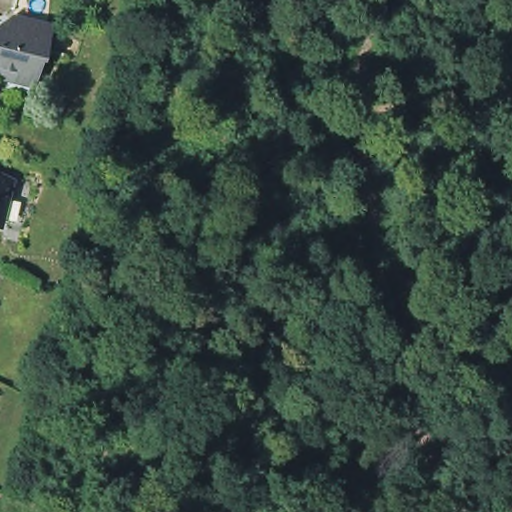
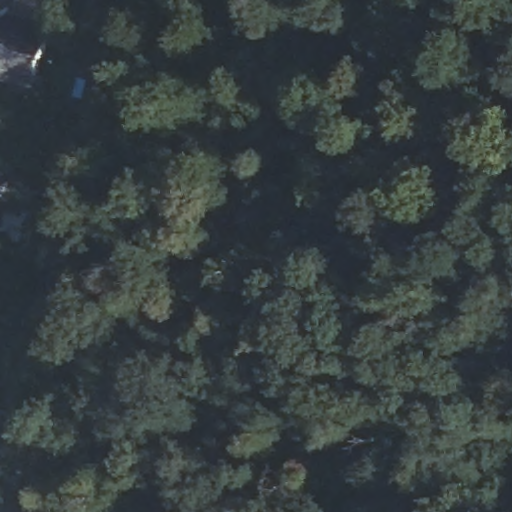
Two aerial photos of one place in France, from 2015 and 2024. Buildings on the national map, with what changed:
unchanged [(0,22),(9,17),(24,21),(47,27),(39,57),(36,57),(32,74),(29,85),(1,77),(0,75),(0,22)]
unchanged [(2,225),(0,224),(0,175),(14,182),(2,225)]

